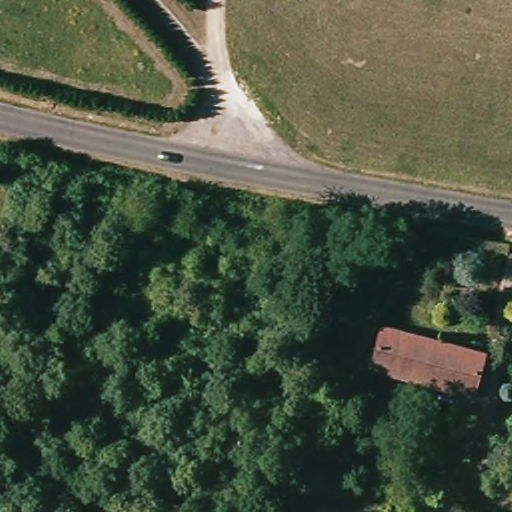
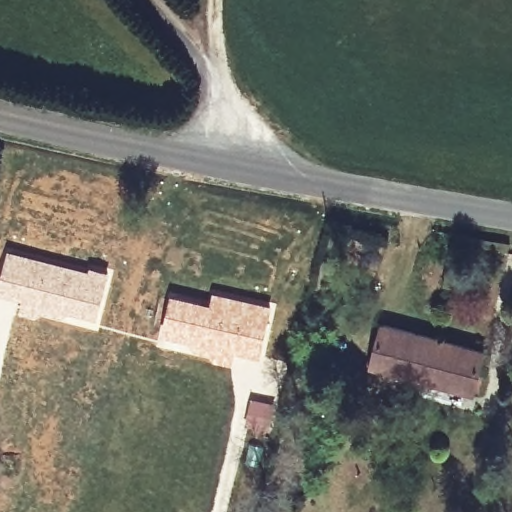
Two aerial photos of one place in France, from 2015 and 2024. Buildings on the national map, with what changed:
new [(87,269),(88,265),(110,271),(97,330),(39,315),(37,317),(19,312),(22,299),(0,294),(0,276),(7,250),(87,269)]
new [(169,293),(209,302),(212,291),(273,305),(261,360),(234,352),(231,365),(155,346),(169,293)]
unchanged [(367,365),(371,350),(377,350),(384,325),(432,335),(422,377),(367,365)]
unchanged [(483,348),(477,375),(485,376),(481,392),(422,377),(432,335),(483,348)]
new [(248,397),(277,405),(270,437),(242,429),(248,397)]

